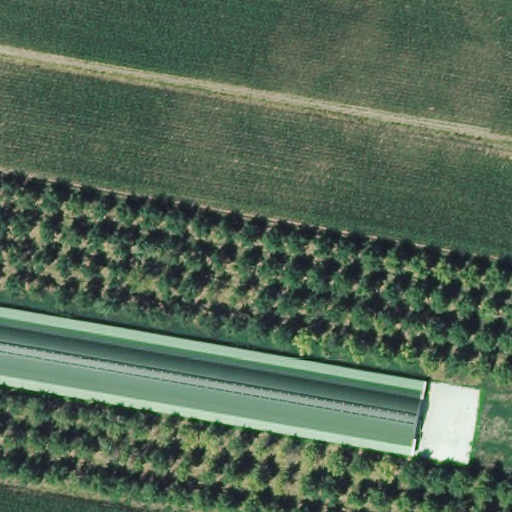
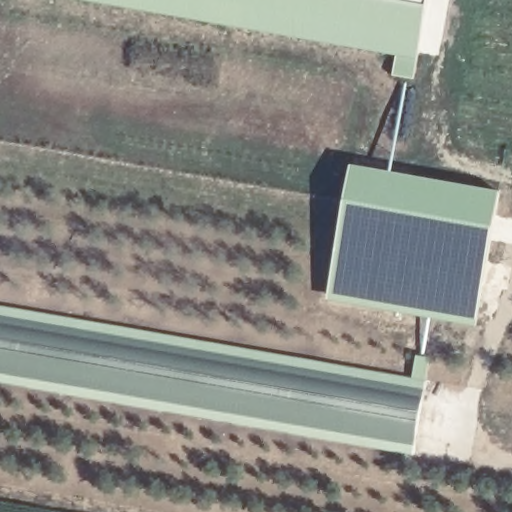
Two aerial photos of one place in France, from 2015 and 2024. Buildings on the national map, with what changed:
new [(441,58),(418,55),(414,81),(391,77),(394,59),(71,0),(450,0),(441,58)]
new [(352,167),(502,193),(476,328),(324,302),(352,167)]
unchanged [(414,441),(0,369),(0,320),(422,394),(414,441)]

